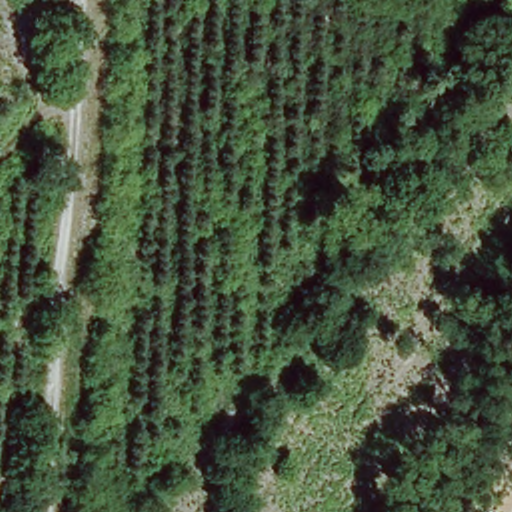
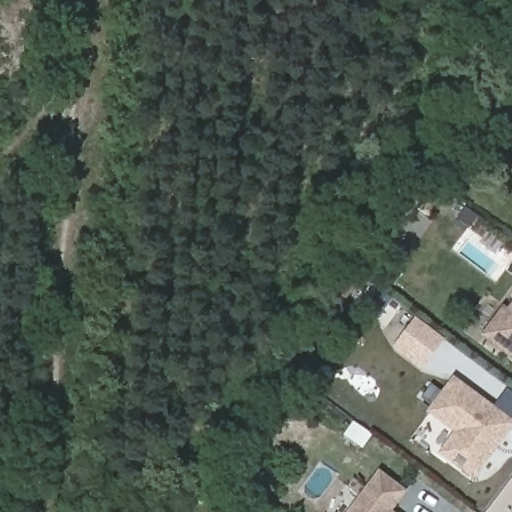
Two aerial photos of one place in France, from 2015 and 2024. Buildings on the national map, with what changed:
new [(482,336),(512,294),(512,359),(482,336)]
new [(391,348),(415,316),(445,339),(422,371),(391,348)]
new [(473,481),(437,454),(453,432),(426,412),(453,375),(512,419),(512,430),(473,481)]
new [(407,491),(392,511),(394,512),(347,512),(380,470),(407,491)]

